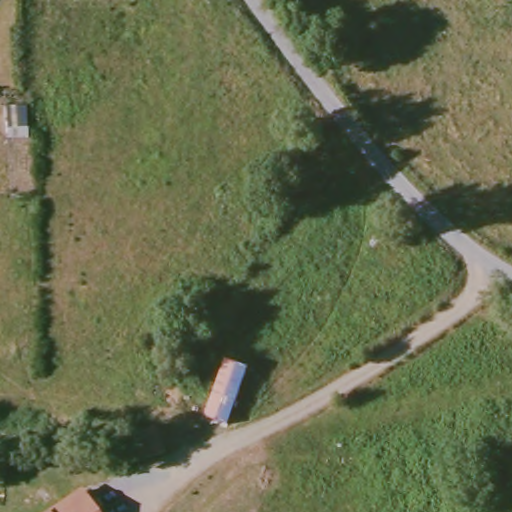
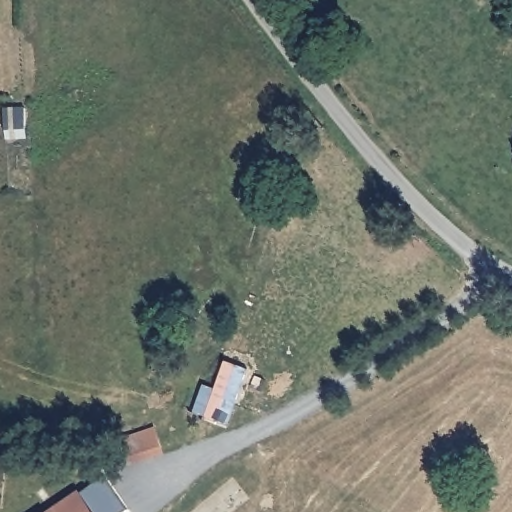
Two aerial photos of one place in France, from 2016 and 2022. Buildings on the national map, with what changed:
unchanged [(237,187),(265,191),(262,205),(236,202),(237,187)]
unchanged [(93,512),(51,512),(80,492),(93,512)]

